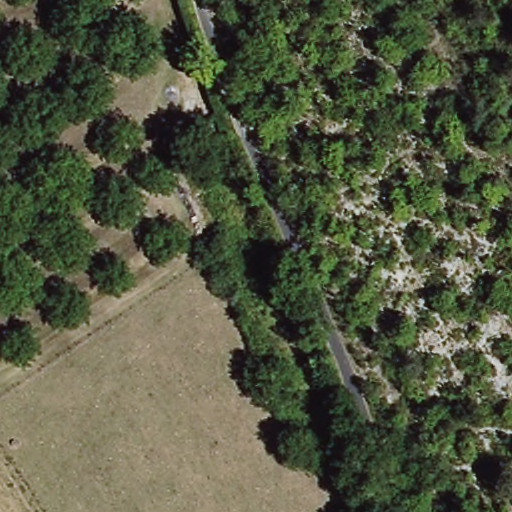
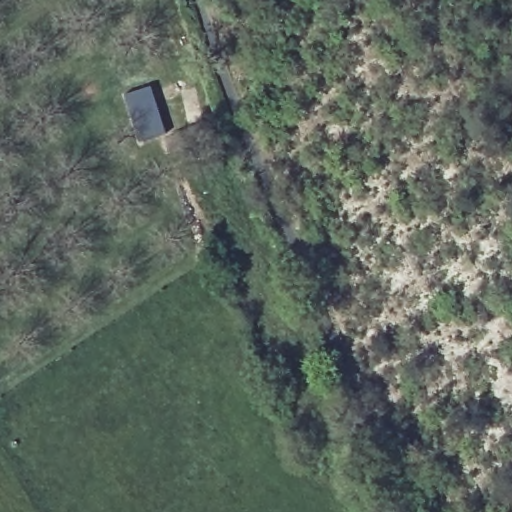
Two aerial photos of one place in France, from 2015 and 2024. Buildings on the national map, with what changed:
new [(124,96),(150,88),(163,134),(138,142),(124,96)]

